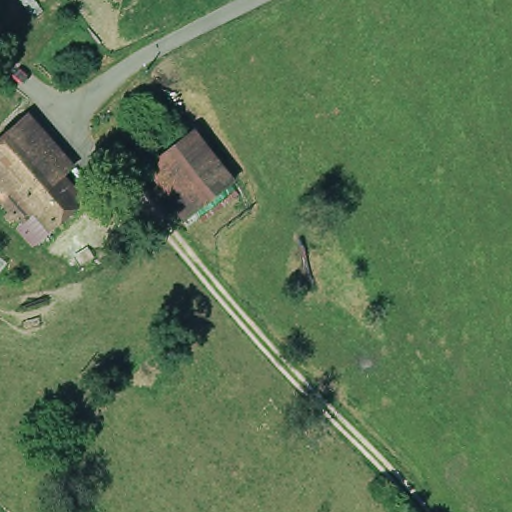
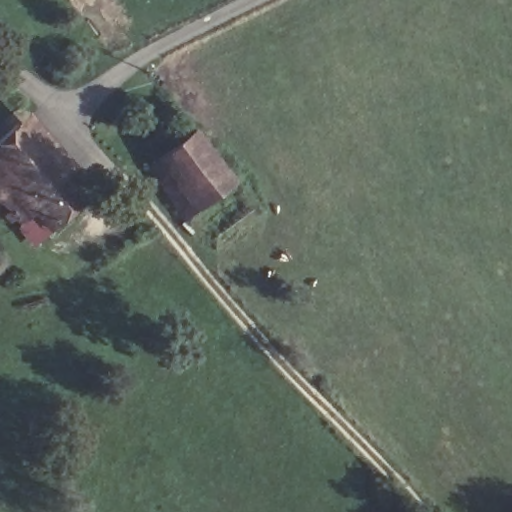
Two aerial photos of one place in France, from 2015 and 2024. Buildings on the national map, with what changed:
unchanged [(63,171),(81,196),(30,236),(0,203),(0,135),(30,106),(74,159),(63,171)]
unchanged [(256,212),(219,239),(196,213),(181,222),(143,168),(196,123),(256,212)]
unchanged [(0,250),(13,239),(21,247),(6,260),(0,252),(0,250)]

